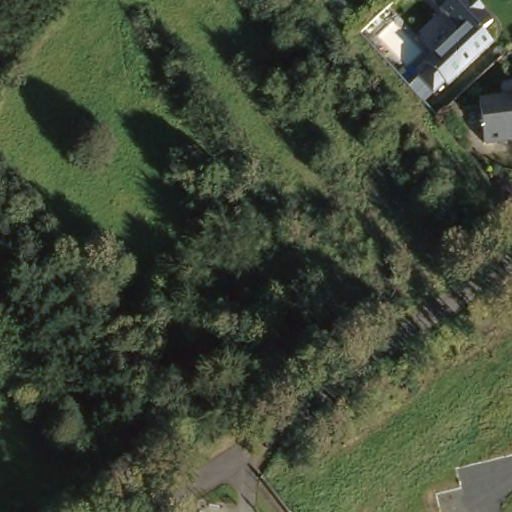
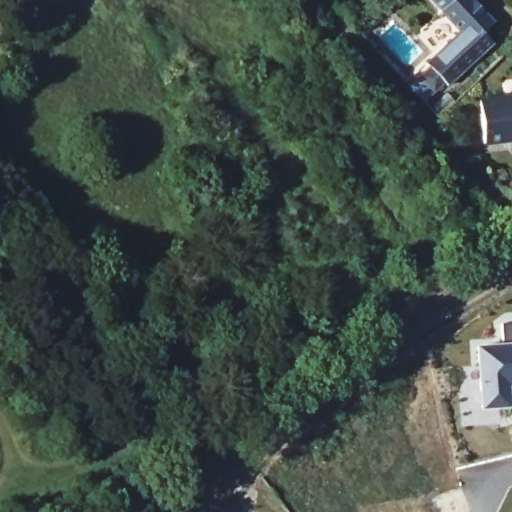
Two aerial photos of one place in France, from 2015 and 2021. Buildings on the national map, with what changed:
unchanged [(492,14),(481,26),(492,37),(446,80),(442,76),(430,86),(415,69),(427,59),(423,55),(458,24),(438,2),(441,0),(480,0),(492,14)]
unchanged [(478,95),(512,91),(512,134),(483,137),(478,95)]
new [(505,346),(503,324),(512,324),(512,388),(510,388),(512,406),(486,407),(481,348),(505,346)]

